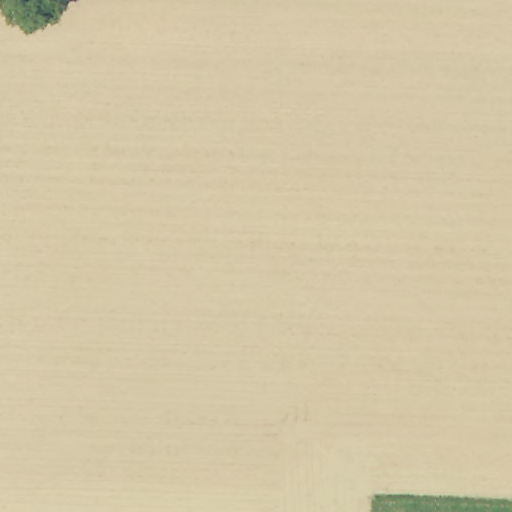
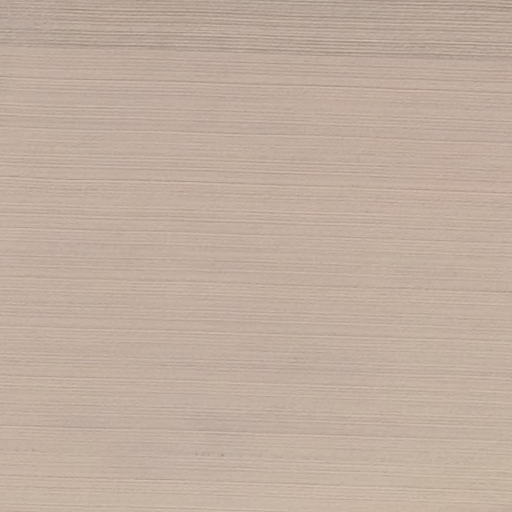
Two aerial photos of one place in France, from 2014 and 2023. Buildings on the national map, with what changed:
[]

